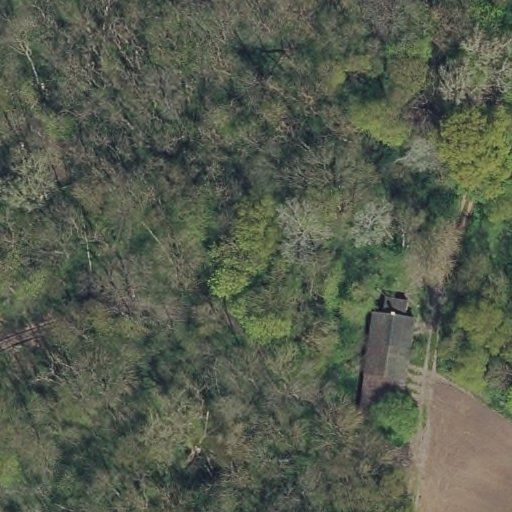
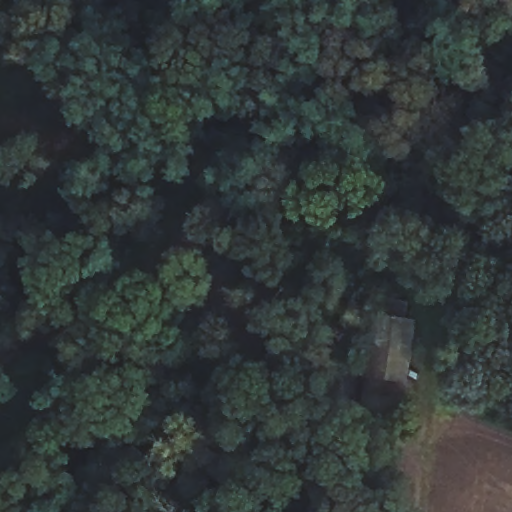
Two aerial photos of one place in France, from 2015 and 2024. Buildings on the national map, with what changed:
unchanged [(382,311),(383,295),(406,298),(403,317),(412,320),(408,346),(368,341),(372,312),(382,311)]
unchanged [(404,380),(364,373),(368,341),(408,346),(404,380)]

